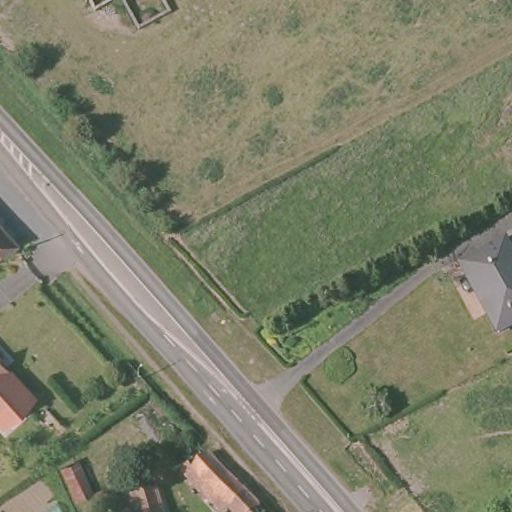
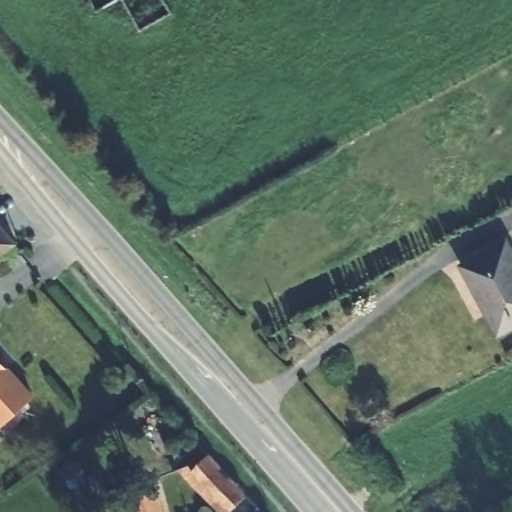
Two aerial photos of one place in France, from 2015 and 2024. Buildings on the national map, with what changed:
unchanged [(0,257),(0,222),(19,242),(0,257)]
unchanged [(512,265),(512,330),(496,338),(481,311),(487,307),(464,262),(499,242),(512,265)]
unchanged [(0,383),(3,381),(27,413),(0,437),(0,383)]
unchanged [(179,470),(209,454),(263,512),(219,512),(179,470)]
unchanged [(60,468),(80,460),(93,495),(76,503),(60,468)]
unchanged [(117,497),(158,487),(166,512),(121,512),(117,497)]

